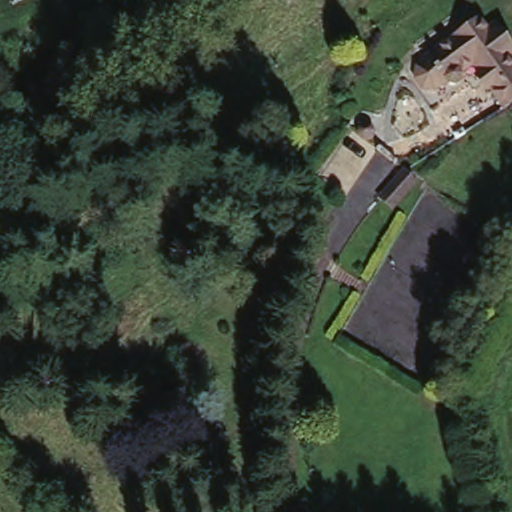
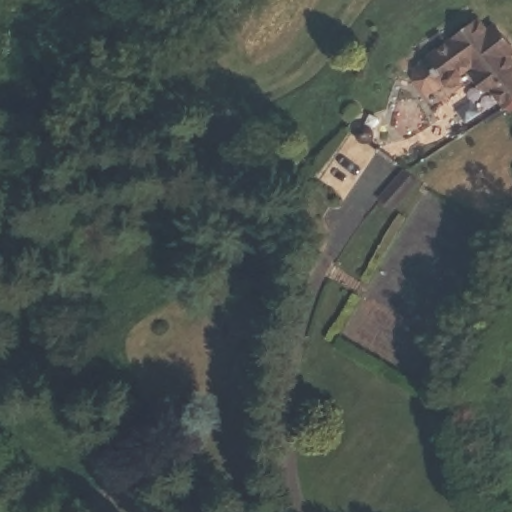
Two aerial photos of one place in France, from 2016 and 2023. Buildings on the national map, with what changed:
unchanged [(442,89),(423,91),(413,87),(406,77),(407,67),(418,57),(454,34),(449,24),(474,7),(489,30),(497,25),(512,49),(512,55),(505,61),(512,71),(512,83),(489,102),(468,72),(442,89)]
unchanged [(341,147),(351,154),(332,180),(329,184),(320,179),(323,173),(341,147)]
unchanged [(382,197),(409,169),(418,178),(404,189),(391,209),(382,197)]

